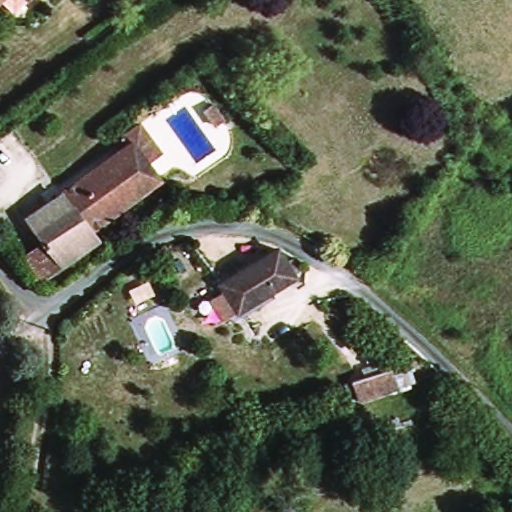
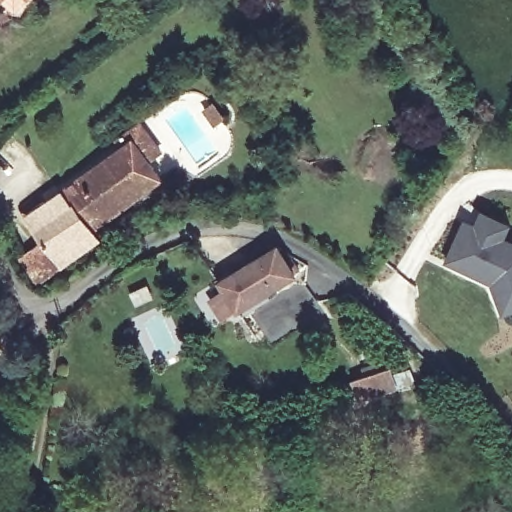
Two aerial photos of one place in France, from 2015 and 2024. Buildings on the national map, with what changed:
unchanged [(16,0),(29,0),(21,6),(16,0)]
unchanged [(223,140),(215,146),(202,130),(211,125),(223,140)]
unchanged [(96,231),(60,257),(48,239),(30,215),(128,146),(123,140),(145,126),(166,157),(159,162),(170,180),(96,231)]
new [(492,285),(447,263),(465,220),(476,225),(481,212),(511,225),(506,238),(512,241),(512,311),(502,314),(492,285)]
unchanged [(105,243),(43,283),(23,256),(48,239),(60,257),(96,231),(105,243)]
unchanged [(240,312),(233,312),(214,284),(273,249),(295,276),(240,312)]
unchanged [(300,366),(303,339),(341,322),(352,345),(300,366)]
new [(416,383),(351,404),(344,383),(352,381),(366,376),(363,369),(388,361),(391,368),(394,374),(411,367),(416,383)]

